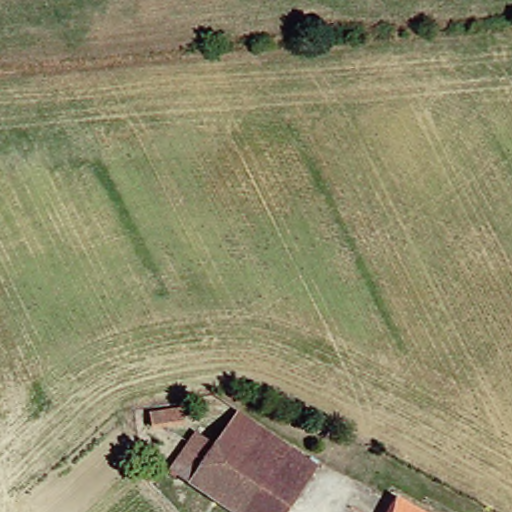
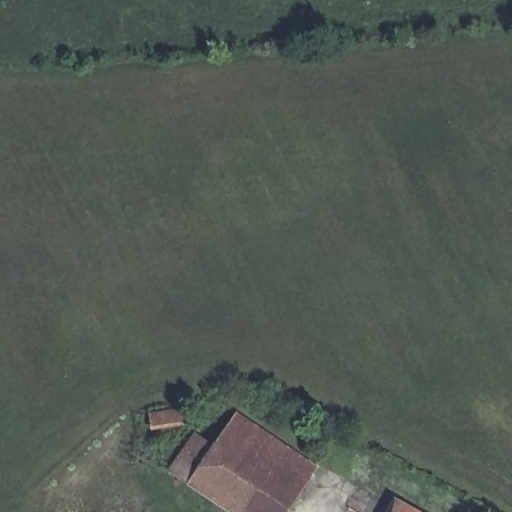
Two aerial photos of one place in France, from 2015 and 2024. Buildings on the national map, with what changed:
unchanged [(217,452),(238,420),(266,439),(256,455),(286,473),(261,512),(230,512),(173,473),(195,439),(217,452)]
unchanged [(316,471),(288,512),(261,512),(286,473),(256,455),(266,439),(316,471)]
unchanged [(394,500),(416,512),(387,512),(394,500)]

